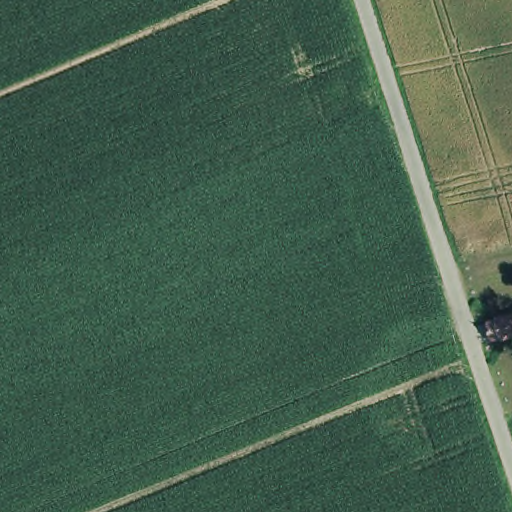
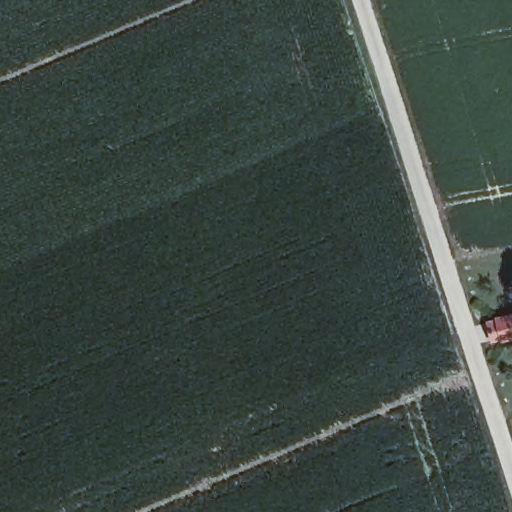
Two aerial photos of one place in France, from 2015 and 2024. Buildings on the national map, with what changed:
unchanged [(505,345),(505,341),(495,344),(490,329),(498,325),(498,320),(512,317),(512,343),(505,345)]

